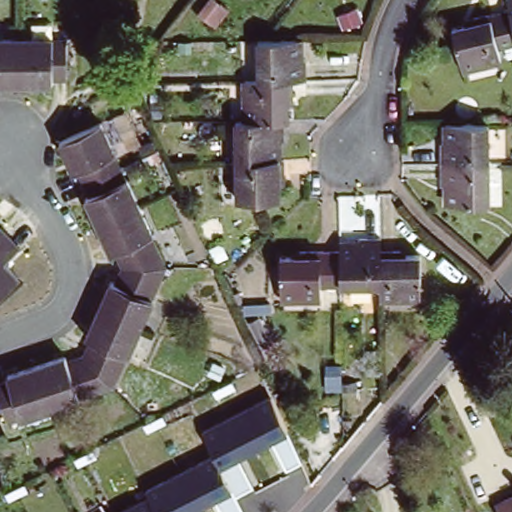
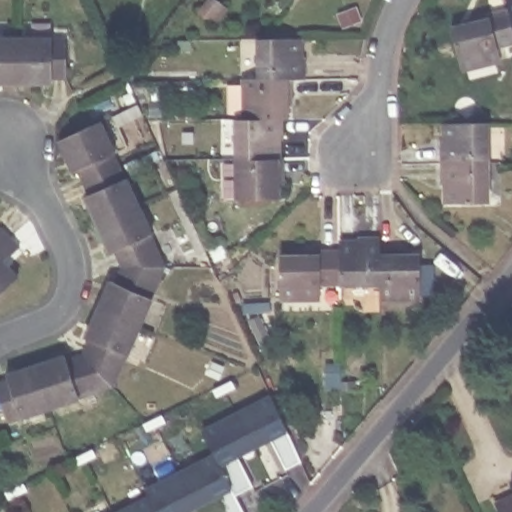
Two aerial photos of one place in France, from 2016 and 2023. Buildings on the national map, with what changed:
unchanged [(510,0),(512,0),(512,7),(510,0)]
unchanged [(454,26),(473,21),(472,17),(512,7),(512,42),(500,45),(502,58),(464,67),(459,48),(454,26)]
unchanged [(0,36),(20,35),(24,35),(49,35),(49,38),(54,38),(63,38),(64,40),(64,76),(49,76),(49,77),(49,81),(21,81),(0,82),(0,36)]
unchanged [(298,39),(298,58),(302,58),(302,80),(289,80),(257,81),(257,40),(298,39)]
unchanged [(289,80),(289,100),(285,100),(285,121),(281,121),(245,122),(244,81),(257,81),(289,80)]
unchanged [(281,121),(282,138),(278,138),(279,160),(237,161),(237,122),(245,122),(281,121)]
unchanged [(87,193),(83,183),(77,170),(73,171),(60,140),(89,127),(100,123),(114,154),(112,155),(118,168),(121,176),(87,193)]
unchanged [(442,143),(447,143),(447,124),(490,123),(491,163),(443,164),(442,143)]
unchanged [(279,160),(282,160),(284,180),(279,180),(280,200),(239,201),(237,161),(279,160)]
unchanged [(491,163),(492,203),(450,204),(449,186),(444,186),(443,164),(491,163)]
unchanged [(147,242),(115,258),(112,252),(109,253),(97,225),(84,195),(87,193),(121,176),(123,180),(126,179),(138,206),(150,234),(147,235),(150,240),(147,242)]
unchanged [(0,241),(0,239),(1,240),(0,241)]
unchanged [(2,242),(12,252),(0,262),(0,241),(1,240),(2,242)]
unchanged [(150,240),(160,263),(157,270),(146,296),(149,297),(147,301),(146,305),(137,326),(133,335),(125,354),(122,353),(117,364),(117,368),(109,385),(96,389),(75,397),(76,399),(66,403),(62,404),(47,409),(32,415),(17,419),(17,417),(15,417),(4,421),(2,416),(0,411),(0,384),(5,382),(3,377),(2,376),(22,370),(31,367),(57,358),(61,356),(63,362),(82,355),(84,350),(89,339),(85,337),(96,310),(106,286),(107,283),(108,280),(112,282),(118,266),(115,258),(147,242),(150,240)]
unchanged [(342,255),(342,248),(360,248),(360,243),(382,243),(383,256),(384,289),(343,290),(342,255)]
unchanged [(322,290),(322,302),(283,302),(283,260),(302,260),(302,255),(342,255),(343,290),(322,290)]
unchanged [(383,256),(404,256),(404,260),(422,260),(422,303),(384,302),(384,289),(383,256)]
unchanged [(0,287),(0,270),(9,279),(0,287)]
unchanged [(147,487),(213,454),(201,429),(270,395),(287,433),(221,466),(232,491),(189,512),(119,512),(151,497),(147,487)]
unchanged [(510,500),(512,499),(512,512),(508,512),(504,502),(510,500)]

